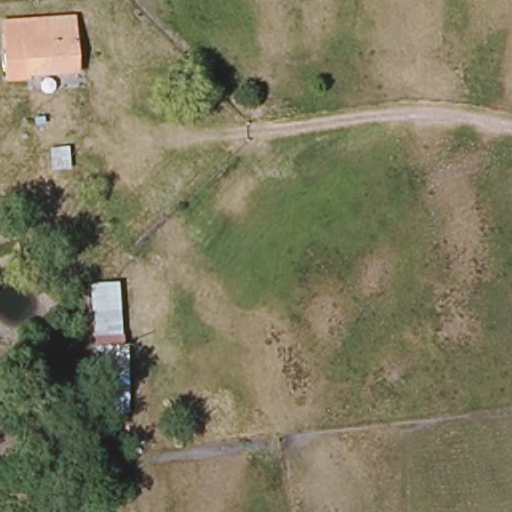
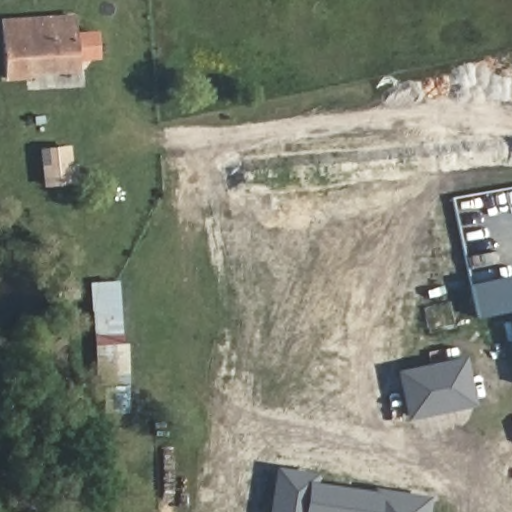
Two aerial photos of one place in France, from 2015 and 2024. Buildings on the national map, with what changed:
unchanged [(74,35),(30,42),(36,79),(20,81),(2,81),(0,49),(0,41),(0,24),(73,21),(74,35)]
unchanged [(78,73),(68,74),(36,79),(30,42),(74,35),(78,73)]
demolished [(70,224),(15,229),(14,206),(70,206),(70,224)]
new [(512,290),(512,308),(474,317),(467,283),(508,275),(512,290)]
unchanged [(118,334),(91,336),(87,309),(116,306),(118,334)]
new [(393,370),(463,356),(473,405),(402,419),(393,370)]
new [(274,466),(316,473),(314,481),(371,490),(372,487),(428,496),(426,512),(266,512),(274,466)]

